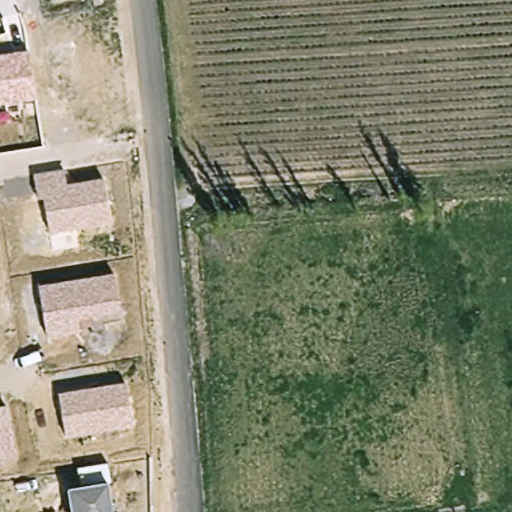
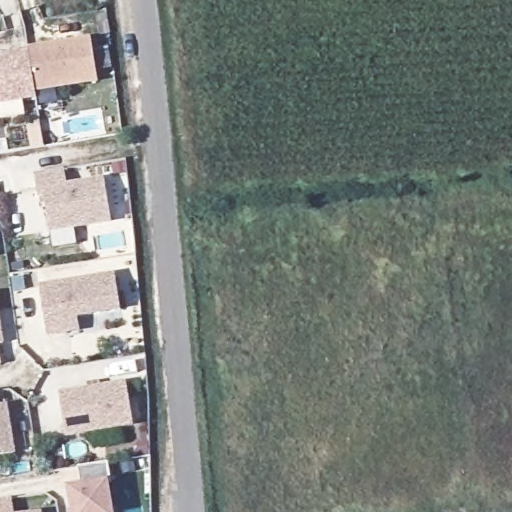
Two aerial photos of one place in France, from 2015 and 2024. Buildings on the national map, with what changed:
new [(28,48),(90,38),(98,82),(32,92),(28,51),(28,48)]
unchanged [(0,106),(0,55),(28,51),(33,100),(0,106)]
unchanged [(103,177),(108,222),(51,233),(44,196),(39,198),(35,176),(62,171),(67,184),(103,177)]
unchanged [(120,311),(78,319),(79,333),(47,338),(39,286),(112,274),(120,311)]
new [(4,344),(0,345),(0,319),(4,344)]
new [(1,365),(0,365),(0,363),(1,365)]
unchanged [(59,395),(124,383),(130,427),(68,437),(59,395)]
unchanged [(15,455),(0,458),(0,406),(7,406),(15,455)]
unchanged [(72,512),(68,488),(82,486),(78,469),(108,464),(111,484),(108,482),(112,512),(72,512)]

